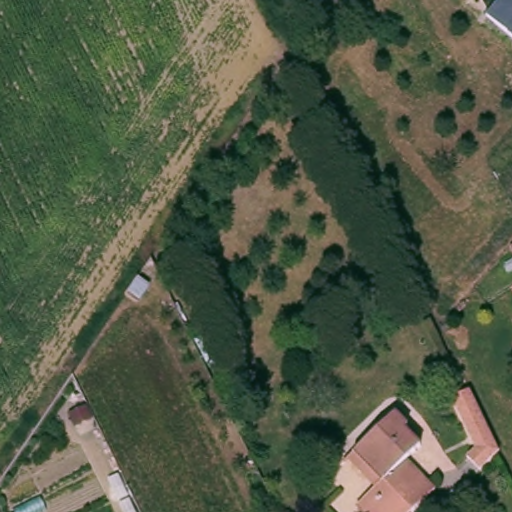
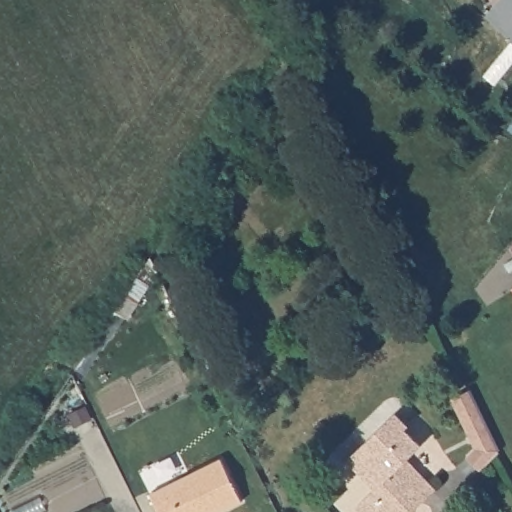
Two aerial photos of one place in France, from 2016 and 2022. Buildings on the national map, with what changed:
unchanged [(498,0),(512,0),(512,26),(491,8),(498,0)]
unchanged [(512,246),(512,252),(509,247),(512,246)]
unchanged [(380,484),(351,455),(359,447),(400,408),(412,420),(409,424),(425,440),(410,454),(440,484),(411,512),(373,512),(363,501),(380,484)]
unchanged [(466,419),(477,413),(492,438),(482,444),(466,419)]
new [(221,458),(242,501),(219,512),(160,512),(151,493),(221,458)]

